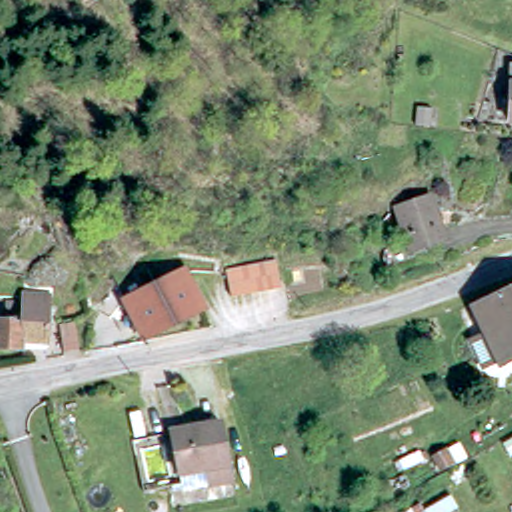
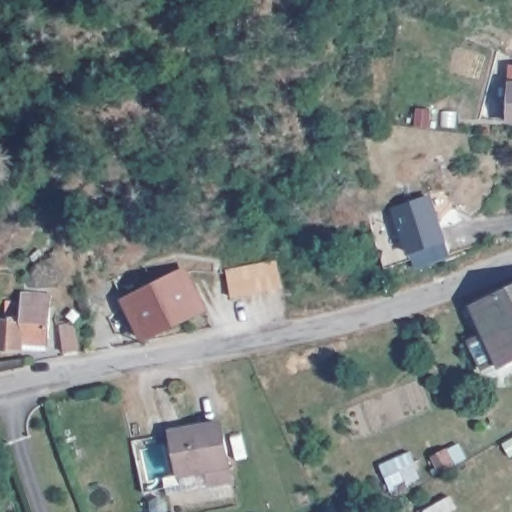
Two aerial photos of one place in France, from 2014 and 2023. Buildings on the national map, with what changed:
unchanged [(508,118),(512,78),(512,119),(508,118)]
unchanged [(422,200),(438,238),(409,251),(392,212),(422,200)]
unchanged [(284,249),(290,276),(240,287),(234,260),(284,249)]
unchanged [(182,272),(191,266),(212,302),(202,308),(202,310),(144,342),(122,304),(180,272),(182,272)]
unchanged [(501,367),(473,304),(512,287),(512,362),(501,367)]
unchanged [(28,346),(0,345),(0,316),(23,317),(25,291),(54,292),(52,341),(29,340),(28,346)]
unchanged [(223,423),(230,464),(233,481),(210,485),(207,468),(180,473),(172,432),(223,423)]
unchanged [(435,462),(449,456),(454,465),(440,472),(435,462)]

